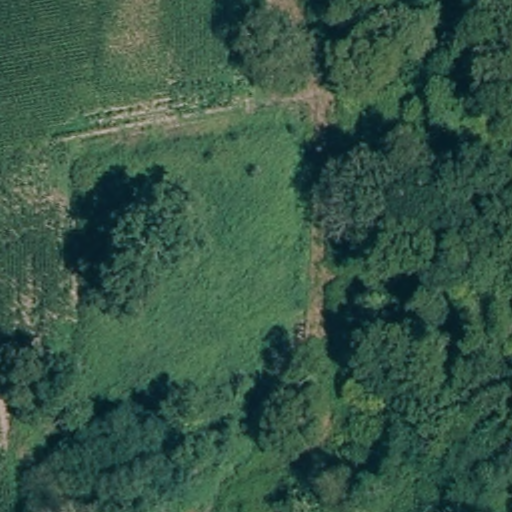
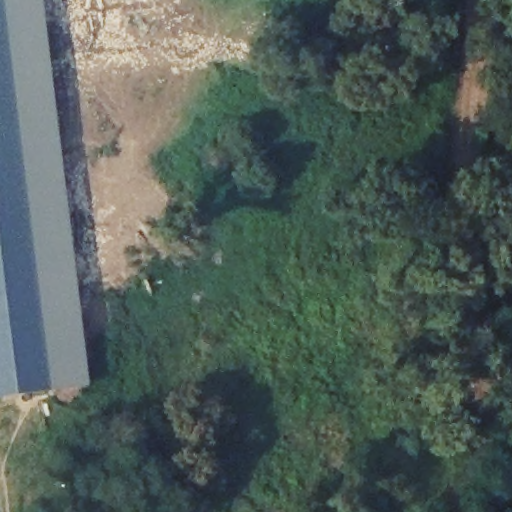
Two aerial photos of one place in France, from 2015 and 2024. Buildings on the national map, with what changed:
new [(0,0),(5,0),(51,392),(0,397),(0,0)]
new [(51,392),(5,0),(41,0),(89,386),(51,392)]

